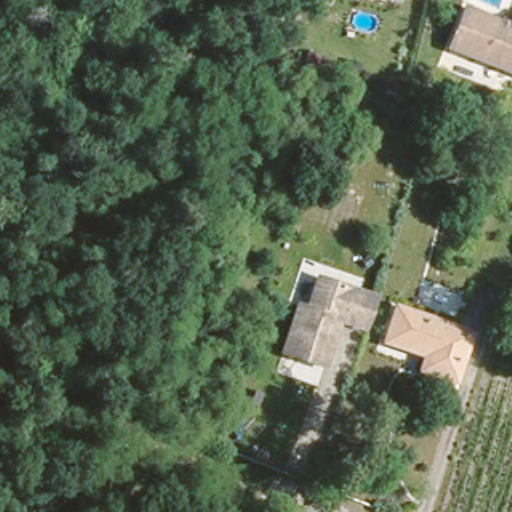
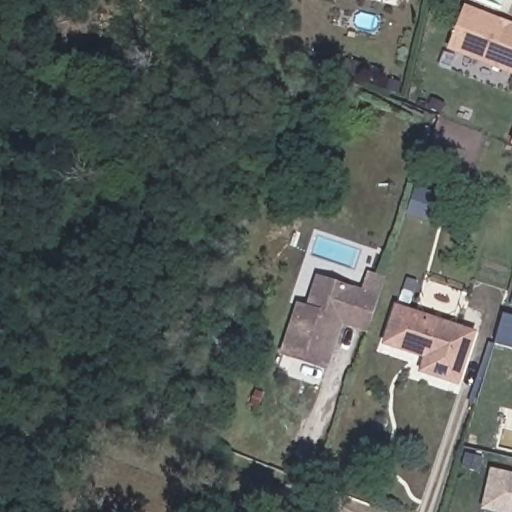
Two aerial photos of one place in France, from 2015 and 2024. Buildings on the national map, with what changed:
unchanged [(462,5),(512,24),(512,72),(446,46),(462,5)]
unchanged [(378,296),(369,326),(342,317),(327,364),(285,350),(300,303),(310,306),(320,275),(379,295),(378,296)]
unchanged [(397,303),(474,328),(456,378),(421,366),(426,351),(385,338),(397,303)]
new [(492,471),(512,475),(512,512),(501,512),(483,508),(492,471)]

